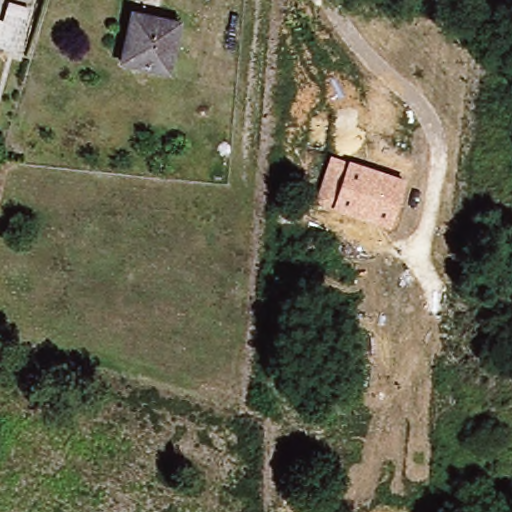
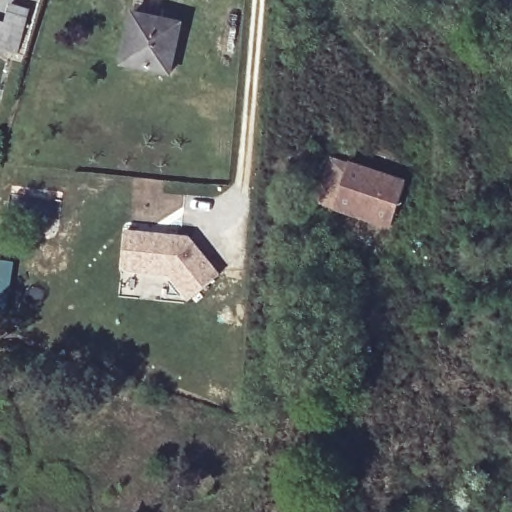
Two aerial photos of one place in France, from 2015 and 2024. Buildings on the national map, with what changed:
unchanged [(0,49),(0,24),(5,25),(11,5),(29,10),(17,54),(0,49)]
unchanged [(164,81),(116,70),(132,10),(142,13),(139,23),(177,32),(164,81)]
unchanged [(405,181),(389,231),(315,205),(330,155),(405,181)]
new [(189,237),(220,275),(187,301),(167,277),(122,273),(125,231),(189,237)]

